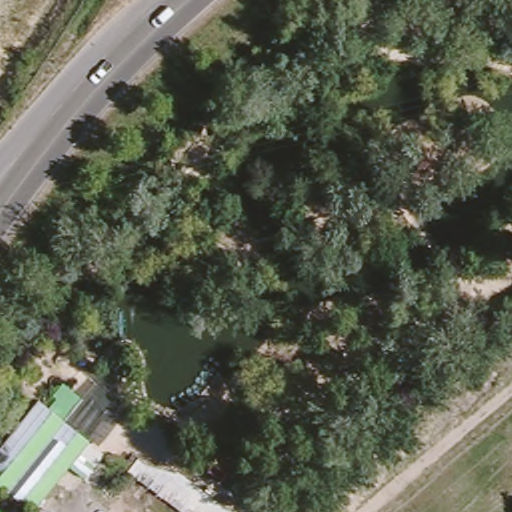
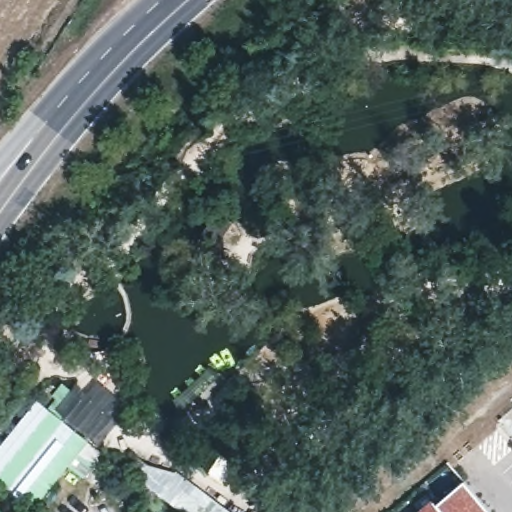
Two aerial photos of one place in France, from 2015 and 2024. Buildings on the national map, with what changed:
unchanged [(40,397),(91,437),(33,510),(0,483),(0,448),(40,397)]
unchanged [(246,512),(183,512),(127,472),(152,446),(246,512)]
new [(482,512),(445,512),(438,504),(465,481),(487,507),(482,512)]
new [(445,512),(429,512),(438,504),(445,512)]

